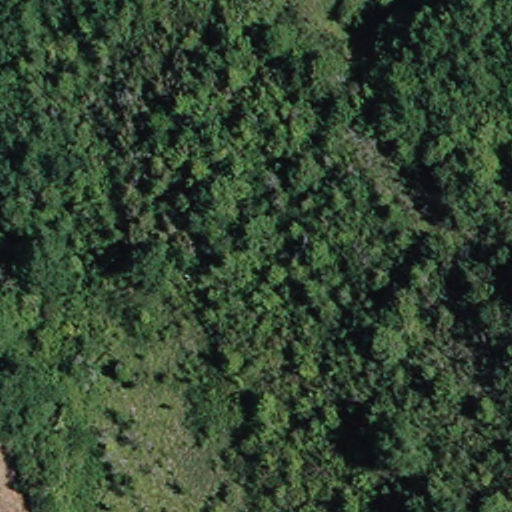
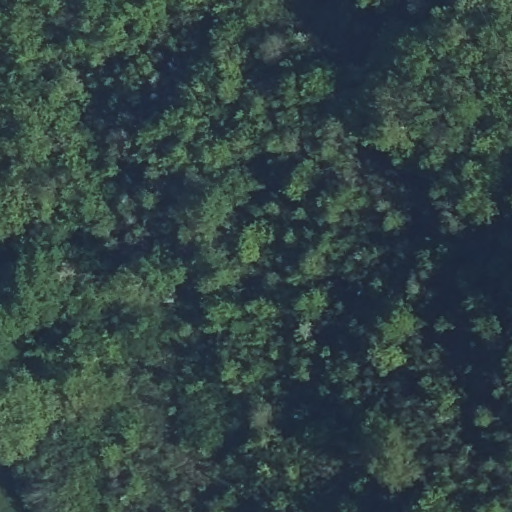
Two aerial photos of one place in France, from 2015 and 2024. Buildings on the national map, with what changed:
[]

